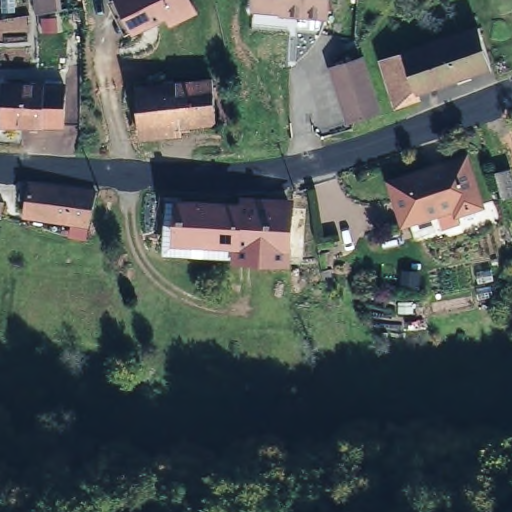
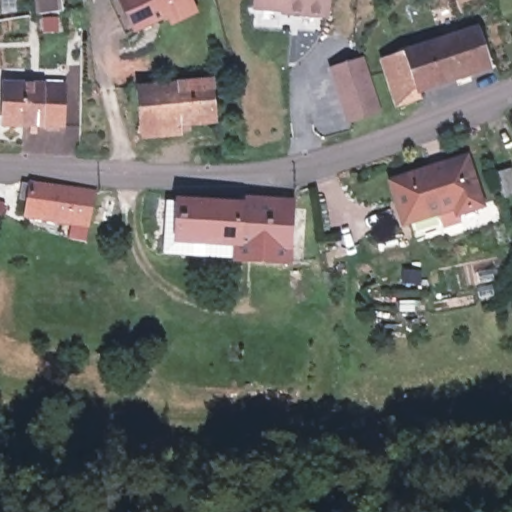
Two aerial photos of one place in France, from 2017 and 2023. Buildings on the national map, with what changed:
unchanged [(199,12),(176,24),(171,14),(138,29),(123,0),(194,0),(199,12)]
unchanged [(322,15),(297,14),(295,12),(251,9),(251,0),(322,0),(322,15)]
unchanged [(57,7),(57,17),(34,20),(34,10),(57,7)]
unchanged [(382,55),(478,24),(491,61),(419,86),(421,95),(398,102),(382,55)]
unchanged [(360,54),(375,108),(350,115),(334,62),(360,54)]
unchanged [(110,152),(106,123),(116,122),(112,91),(160,86),(156,64),(180,60),(183,84),(214,81),(219,121),(140,132),(142,151),(117,153),(110,154),(110,152)]
unchanged [(66,86),(65,126),(5,125),(4,84),(66,86)]
unchanged [(457,149),(472,196),(449,205),(445,194),(394,209),(384,172),(457,149)]
unchanged [(495,179),(494,172),(510,169),(512,175),(512,197),(501,200),(495,179)]
unchanged [(26,216),(28,202),(20,201),(22,184),(54,185),(54,187),(91,194),(85,225),(26,216)]
unchanged [(156,239),(157,186),(172,187),(170,226),(229,229),(229,245),(156,239)]
unchanged [(229,229),(170,226),(172,187),(296,195),(297,250),(229,245),(229,229)]

